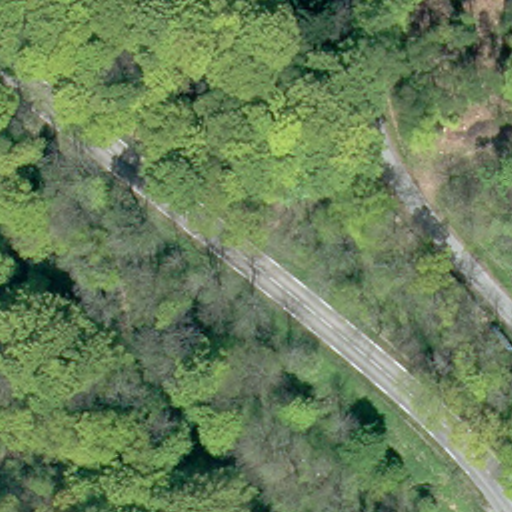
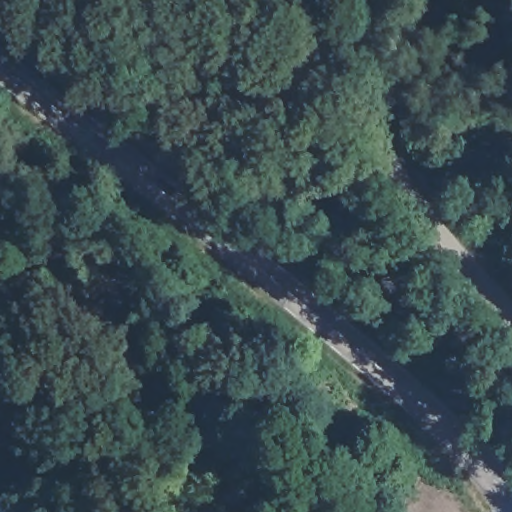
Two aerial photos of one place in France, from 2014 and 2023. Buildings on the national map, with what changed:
[]

